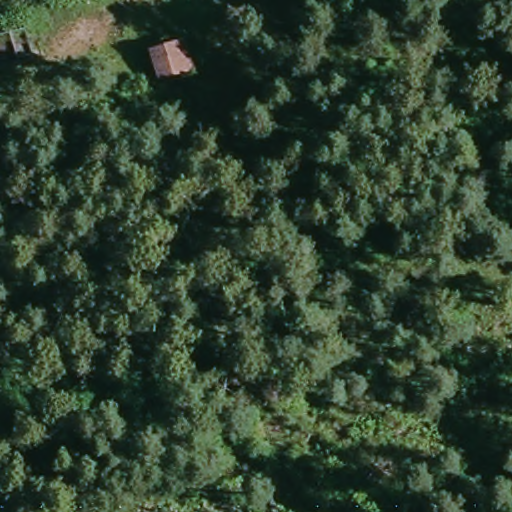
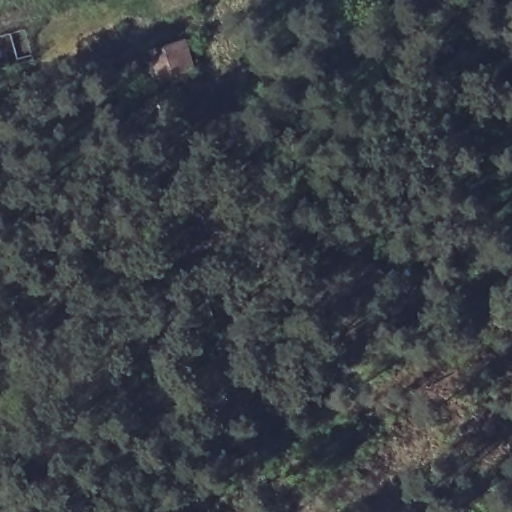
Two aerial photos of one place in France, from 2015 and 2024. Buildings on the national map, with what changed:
unchanged [(201,37),(208,66),(166,77),(160,46),(201,37)]

